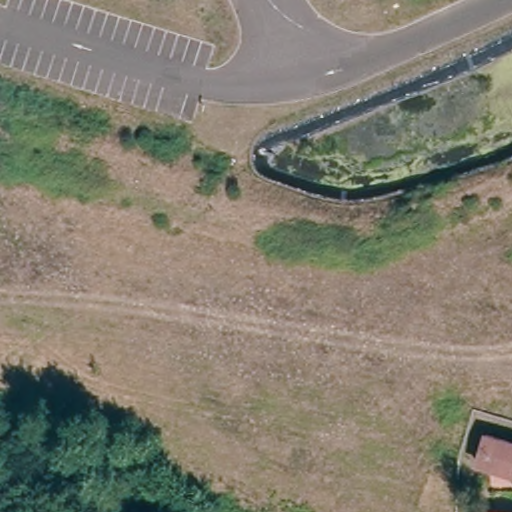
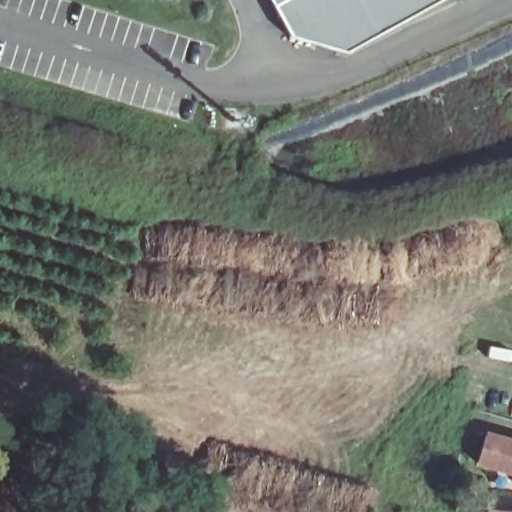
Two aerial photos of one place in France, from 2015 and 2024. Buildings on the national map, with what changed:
new [(287,35),(268,0),(440,0),(347,52),(287,35)]
unchanged [(512,442),(512,471),(485,464),(493,437),(512,442)]

